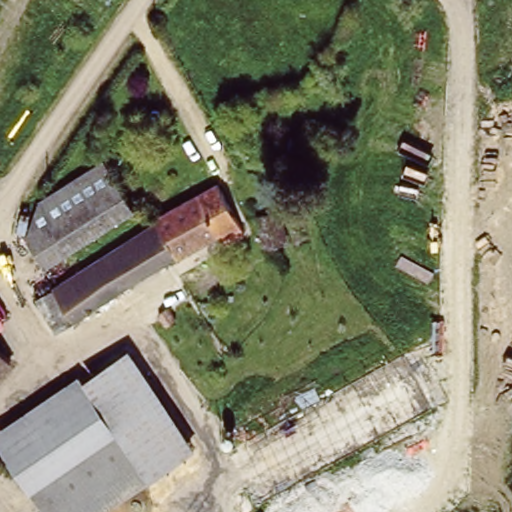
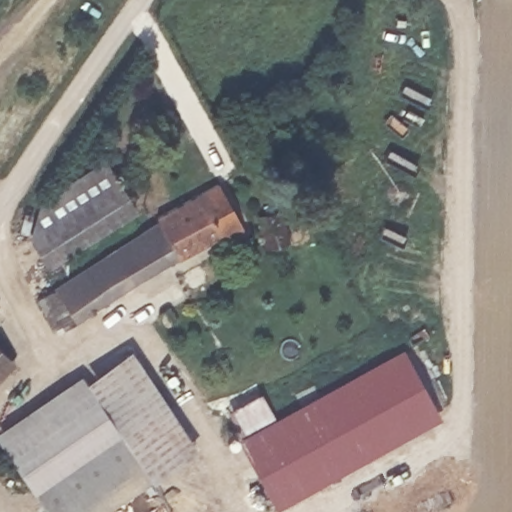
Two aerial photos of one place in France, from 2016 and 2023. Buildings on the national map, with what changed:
unchanged [(31,241),(40,206),(104,164),(135,211),(48,268),(31,241)]
unchanged [(38,295),(155,217),(153,216),(215,177),(246,224),(227,237),(219,225),(60,329),(38,295)]
demolished [(226,457),(395,348),(429,401),(260,510),(226,457)]
unchanged [(100,512),(49,512),(0,440),(0,430),(81,375),(86,382),(133,349),(198,446),(100,512)]
unchanged [(0,369),(0,352),(8,359),(0,369)]

